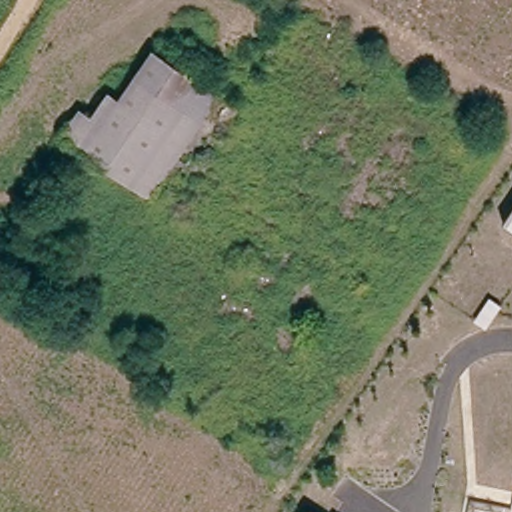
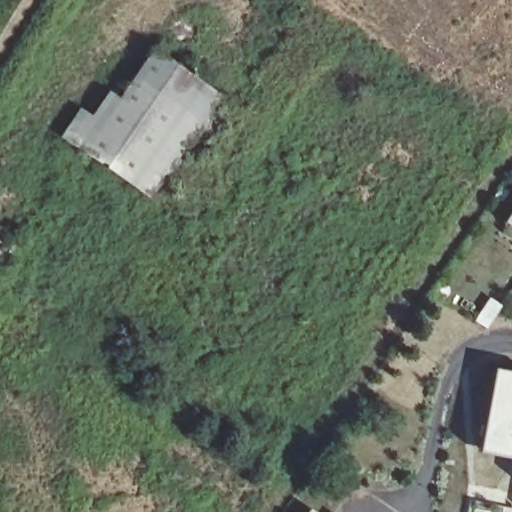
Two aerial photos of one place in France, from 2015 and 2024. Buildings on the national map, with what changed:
unchanged [(169,30),(172,25),(178,22),(185,25),(187,29),(187,36),(184,40),(179,43),(172,41),(169,35),(169,30)]
unchanged [(59,137),(76,113),(99,126),(149,51),(166,63),(235,109),(169,208),(59,137)]
unchanged [(512,212),(512,228),(505,223),(512,212)]
unchanged [(24,233),(0,270),(0,215),(24,233)]
new [(512,372),(512,460),(477,453),(492,368),(512,372)]
unchanged [(314,512),(305,512),(308,508),(314,512)]

